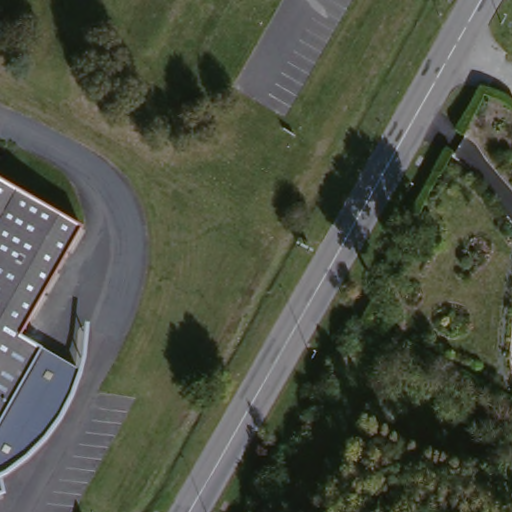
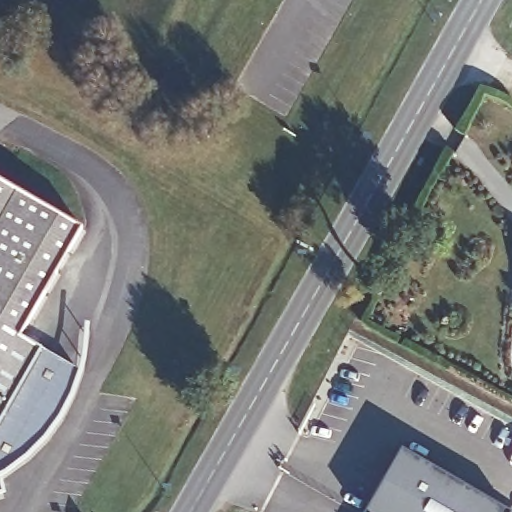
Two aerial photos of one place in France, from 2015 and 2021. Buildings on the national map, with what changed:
unchanged [(18,338),(40,351),(82,376),(52,433),(36,453),(26,463),(15,471),(0,483),(0,183),(80,230),(18,338)]
new [(405,443),(512,506),(512,512),(368,512),(366,511),(405,443)]
unchanged [(0,497),(0,491),(2,496),(0,497)]

